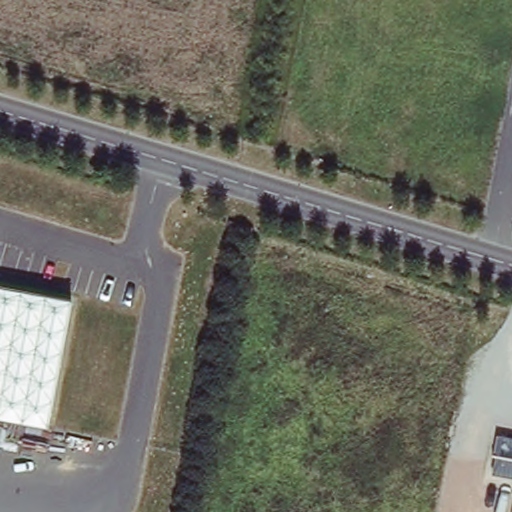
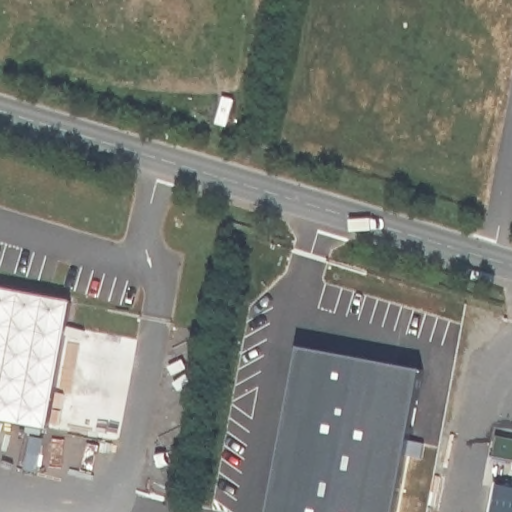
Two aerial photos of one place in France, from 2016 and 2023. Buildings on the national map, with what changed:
unchanged [(70,300),(46,432),(0,423),(0,289),(70,300)]
new [(272,512),(305,352),(425,377),(399,512),(272,512)]
new [(494,437),(512,440),(512,460),(490,457),(494,437)]
new [(512,489),(512,512),(489,512),(493,486),(512,489)]

